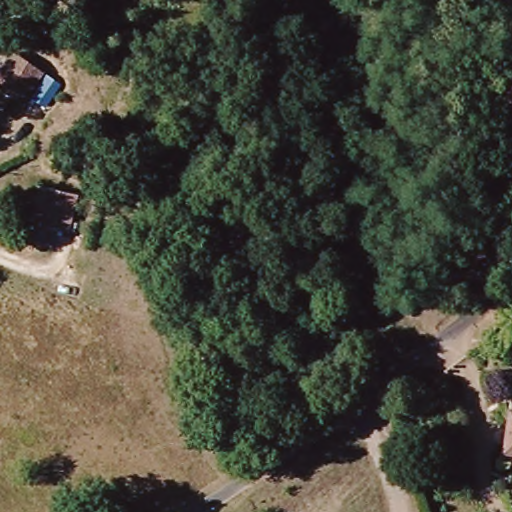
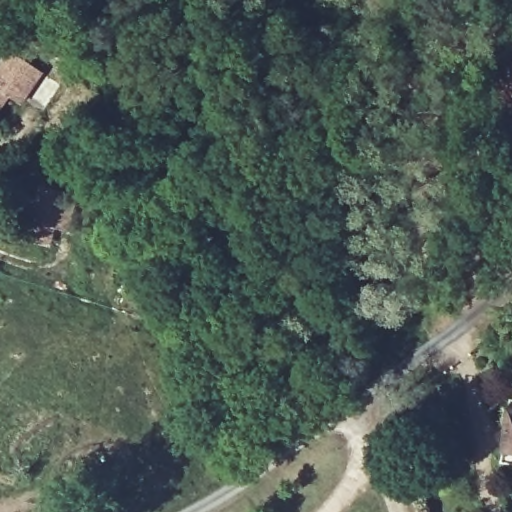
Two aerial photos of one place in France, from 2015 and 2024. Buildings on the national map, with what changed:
unchanged [(31,75),(11,105),(0,99),(0,57),(1,56),(31,75)]
unchanged [(489,83),(512,69),(512,125),(511,125),(498,105),(499,102),(489,83)]
unchanged [(71,194),(63,233),(29,223),(37,186),(71,194)]
unchanged [(500,451),(512,405),(512,455),(500,451)]

